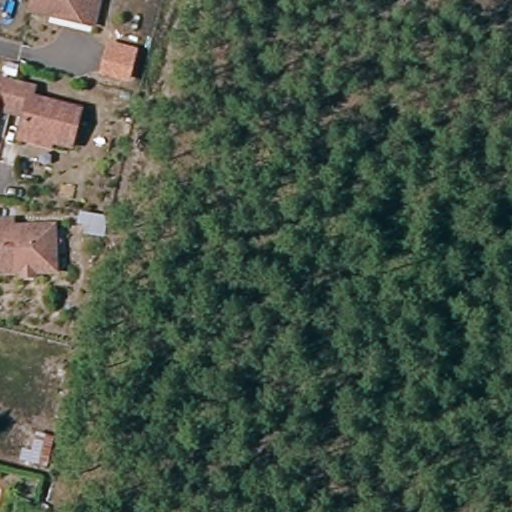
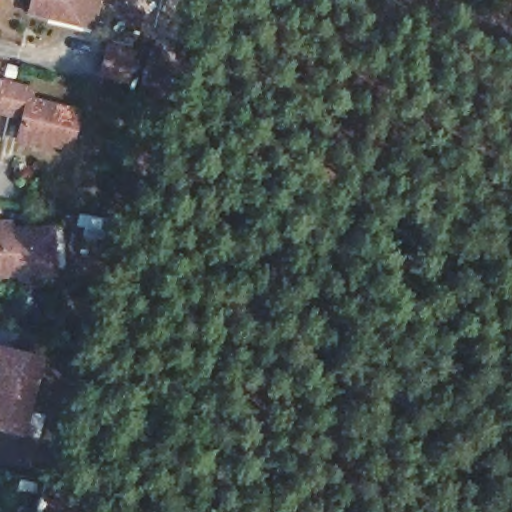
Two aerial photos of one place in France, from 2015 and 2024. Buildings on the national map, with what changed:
unchanged [(38,16),(41,0),(104,0),(103,6),(99,29),(86,26),(38,16)]
unchanged [(138,60),(131,88),(107,82),(114,55),(138,60)]
unchanged [(34,90),(31,102),(80,112),(74,150),(25,138),(26,120),(0,116),(0,92),(1,83),(34,90)]
unchanged [(104,232),(105,224),(97,223),(96,213),(128,216),(123,233),(104,232)]
unchanged [(56,274),(0,280),(0,229),(10,228),(10,234),(10,237),(51,230),(56,274)]
new [(46,356),(26,436),(0,430),(0,347),(3,347),(46,356)]

